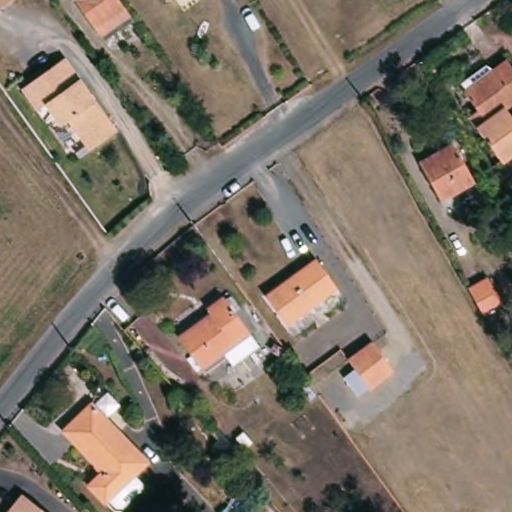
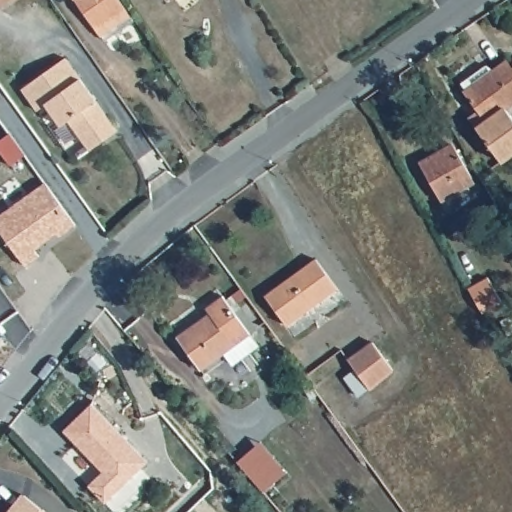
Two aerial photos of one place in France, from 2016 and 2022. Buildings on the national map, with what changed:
unchanged [(10,0),(0,7),(0,0),(10,0)]
unchanged [(74,0),(110,0),(129,26),(106,43),(74,0)]
unchanged [(167,0),(170,0),(168,1),(167,0)]
unchanged [(119,131),(92,150),(70,122),(62,128),(47,109),(41,113),(25,89),(64,61),(119,131)]
unchanged [(473,94),(467,83),(498,65),(503,73),(512,68),(512,115),(509,116),(512,120),(512,159),(499,166),(479,131),(472,119),(484,112),(473,94)]
unchanged [(457,146),(476,182),(440,200),(421,165),(457,146)]
new [(38,257),(24,268),(0,235),(0,215),(42,184),(74,226),(58,238),(55,235),(41,245),(33,251),(30,248),(38,257)]
unchanged [(319,260),(339,290),(288,326),(266,297),(319,260)]
unchanged [(487,285),(500,307),(480,318),(467,296),(487,285)]
unchanged [(262,347),(249,356),(235,365),(227,353),(201,370),(180,337),(213,314),(209,307),(212,305),(227,295),(262,347)]
unchanged [(343,379),(356,371),(349,362),(373,345),(393,373),(369,390),(357,399),(343,379)]
unchanged [(104,502),(90,486),(104,474),(66,429),(94,405),(147,465),(104,502)]
unchanged [(11,511),(24,495),(46,512),(13,512),(11,511)]

